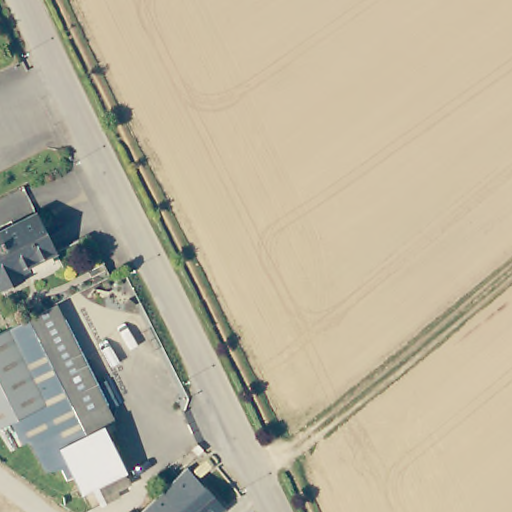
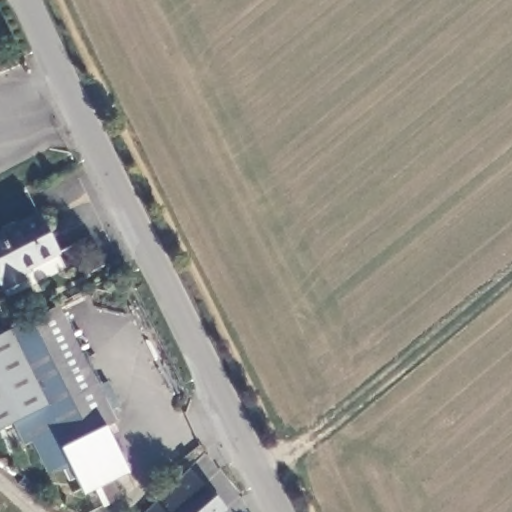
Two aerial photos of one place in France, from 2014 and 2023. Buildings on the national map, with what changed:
unchanged [(21,273),(26,281),(5,292),(0,284),(0,233),(38,214),(58,253),(21,273)]
unchanged [(103,497),(97,481),(85,486),(79,474),(73,476),(66,464),(54,470),(36,437),(28,440),(16,417),(24,414),(0,363),(0,329),(1,328),(30,315),(61,298),(119,416),(109,421),(130,466),(127,466),(136,485),(109,500),(103,497)]
unchanged [(16,417),(0,425),(0,363),(24,414),(16,417)]
unchanged [(225,508),(220,512),(155,512),(155,511),(153,507),(173,490),(187,478),(197,490),(204,485),(225,508)]

